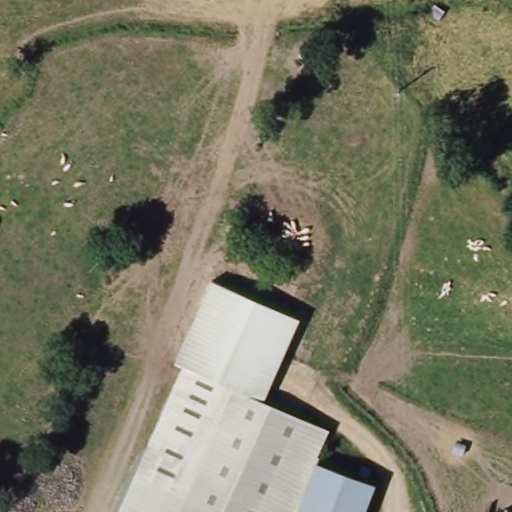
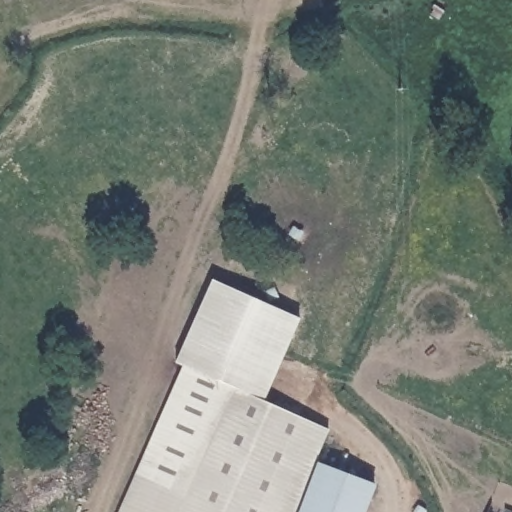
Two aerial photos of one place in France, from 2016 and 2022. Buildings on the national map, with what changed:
unchanged [(172,361),(209,280),(298,320),(264,401),(258,399),(251,397),(179,364),(172,361)]
unchanged [(200,512),(114,512),(179,364),(251,397),(200,512)]
unchanged [(314,459),(318,462),(305,497),(299,512),(200,512),(222,463),(251,397),(258,399),(264,401),(327,431),(314,459)]
unchanged [(359,511),(359,512),(299,512),(305,497),(318,462),(370,482),(359,511)]
unchanged [(512,511),(512,512),(501,512),(503,507),(512,511)]

